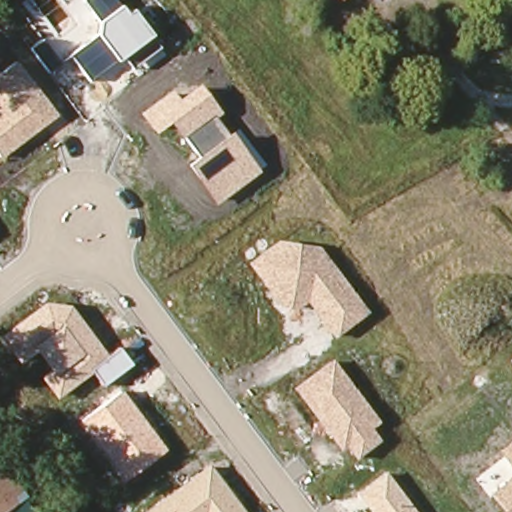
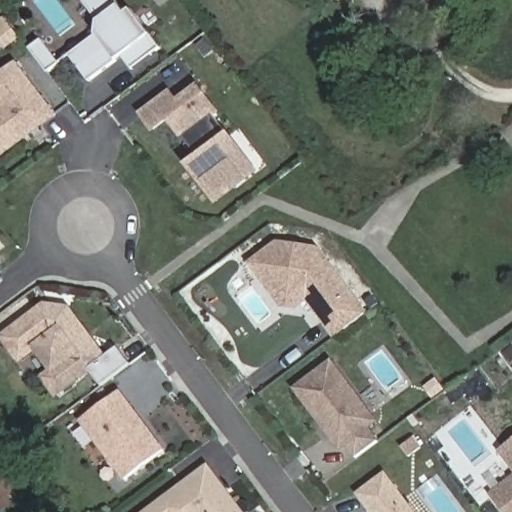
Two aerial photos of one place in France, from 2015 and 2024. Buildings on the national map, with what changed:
unchanged [(160,45),(133,67),(122,55),(115,60),(88,79),(72,53),(97,34),(100,20),(85,0),(119,0),(123,4),(129,13),(135,8),(153,35),(160,45)]
unchanged [(0,156),(0,74),(19,61),(58,115),(1,157),(0,156)]
unchanged [(221,113),(216,117),(231,131),(259,170),(216,203),(185,163),(197,156),(183,137),(169,121),(153,132),(140,112),(172,89),(178,99),(199,83),(221,113)]
unchanged [(368,310),(334,338),(308,302),(295,310),(279,306),(248,261),(278,239),(321,245),(368,310)]
unchanged [(108,356),(119,346),(132,364),(102,386),(92,373),(59,399),(42,377),(52,370),(38,350),(20,364),(0,337),(0,336),(44,301),(70,304),(108,356)]
unchanged [(380,421),(372,427),(382,441),(357,460),(347,446),(340,452),(293,387),(333,357),(380,421)]
unchanged [(124,480),(81,419),(122,389),(165,449),(124,480)]
unchanged [(512,441),(512,469),(499,451),(512,441)]
unchanged [(208,464),(245,512),(144,512),(208,464)]
unchanged [(23,499),(6,512),(0,512),(0,467),(23,499)]
unchanged [(416,512),(372,512),(356,493),(385,472),(416,512)]
unchanged [(512,477),(512,512),(507,512),(492,493),(512,477)]

